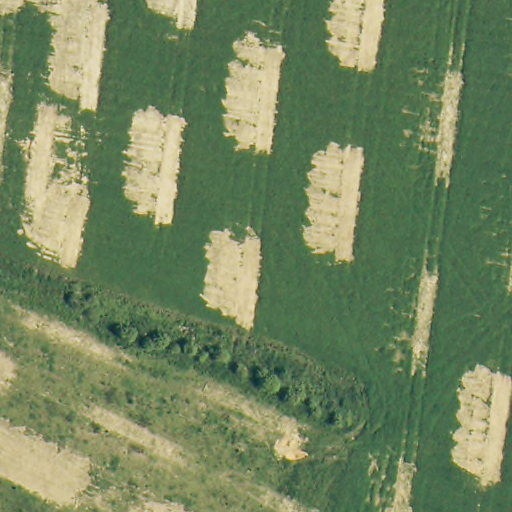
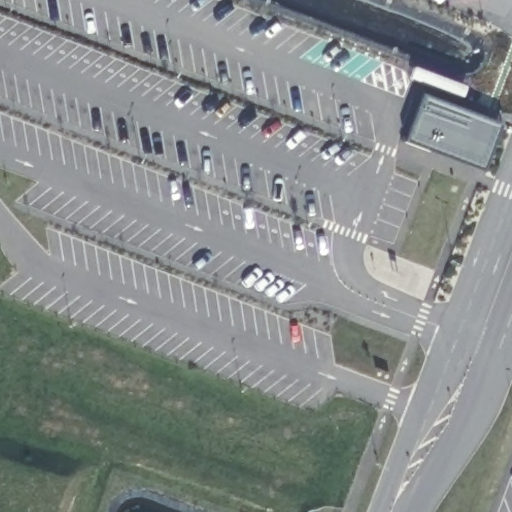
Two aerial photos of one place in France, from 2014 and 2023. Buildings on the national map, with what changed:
new [(484,169),(407,142),(425,95),(502,122),(484,169)]

